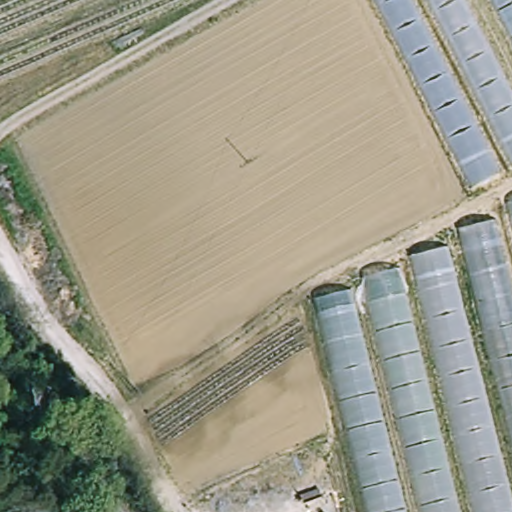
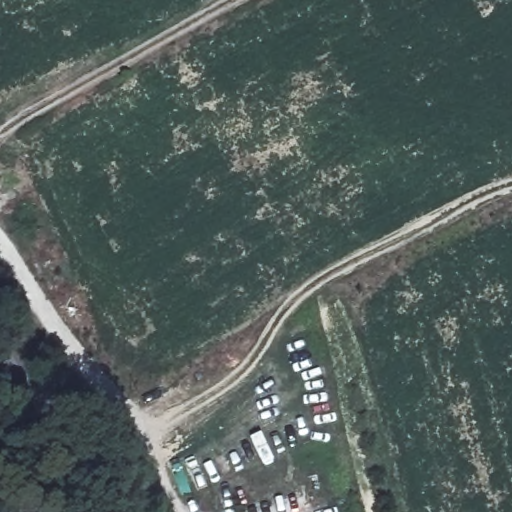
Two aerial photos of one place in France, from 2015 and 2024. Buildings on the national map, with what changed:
demolished [(177,0),(0,71),(0,0),(177,0)]
demolished [(372,0),(512,0),(512,169),(470,190),(372,0)]
demolished [(512,210),(512,512),(367,512),(315,301),(512,210)]

